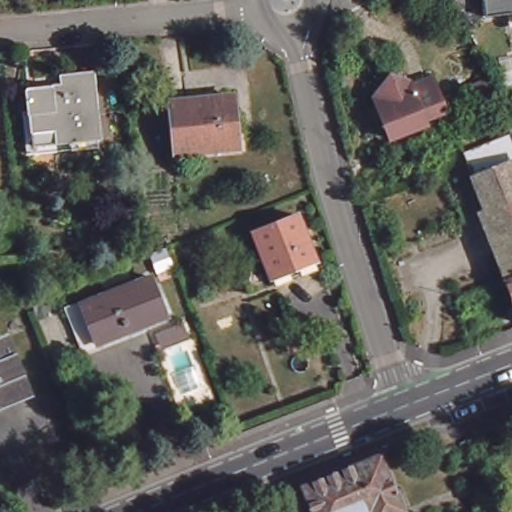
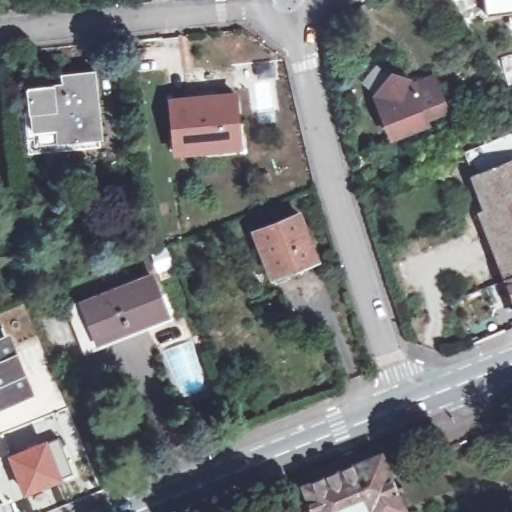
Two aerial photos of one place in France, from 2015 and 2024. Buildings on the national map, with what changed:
unchanged [(470,28),(453,0),(485,0),(487,16),(470,28)]
unchanged [(485,0),(512,0),(512,13),(487,16),(485,0)]
unchanged [(57,83),(56,72),(99,69),(102,140),(23,150),(19,87),(57,83)]
unchanged [(425,120),(427,124),(391,139),(381,113),(375,98),(392,77),(412,85),(431,77),(434,84),(446,111),(425,120)]
unchanged [(234,95),(239,148),(176,154),(171,101),(234,95)]
unchanged [(506,279),(480,212),(485,210),(464,152),(512,133),(512,306),(495,312),(486,287),(506,279)]
unchanged [(299,266),(302,273),(275,284),(254,233),(298,215),(315,259),(299,266)]
unchanged [(175,249),(182,264),(167,272),(160,257),(175,249)]
unchanged [(141,331),(92,351),(87,340),(75,309),(162,276),(176,310),(179,316),(141,331)]
unchanged [(8,337),(28,387),(0,399),(0,340),(8,337)]
new [(59,437),(73,475),(24,495),(8,455),(59,437)]
unchanged [(347,510),(343,512),(310,512),(298,481),(375,450),(397,505),(381,512),(369,512),(366,503),(347,510)]

